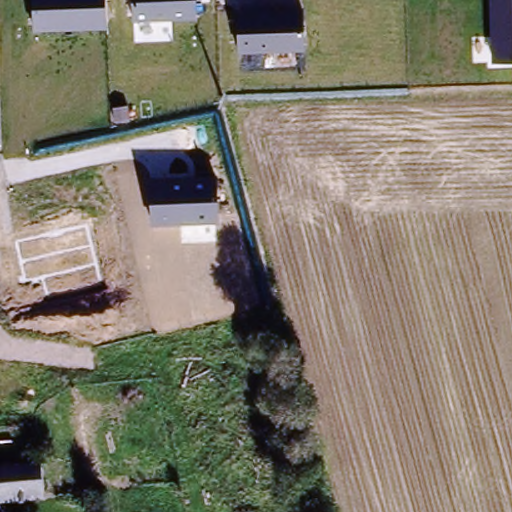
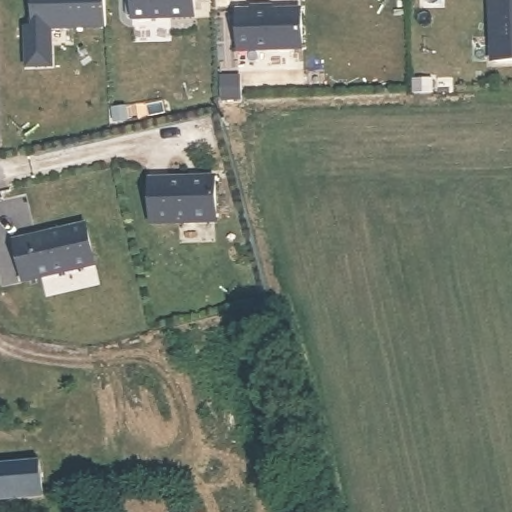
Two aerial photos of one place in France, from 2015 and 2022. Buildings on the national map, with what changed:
unchanged [(106,29),(36,30),(36,0),(105,0),(106,29)]
unchanged [(196,19),(133,20),(133,0),(196,0),(196,19)]
unchanged [(490,0),(512,0),(512,62),(490,62),(490,0)]
unchanged [(302,9),(303,51),(238,51),(238,10),(302,9)]
unchanged [(216,177),(218,222),(150,224),(152,179),(216,177)]
new [(98,267),(22,285),(12,242),(87,225),(98,267)]
unchanged [(43,512),(0,512),(0,482),(43,483),(43,512)]

